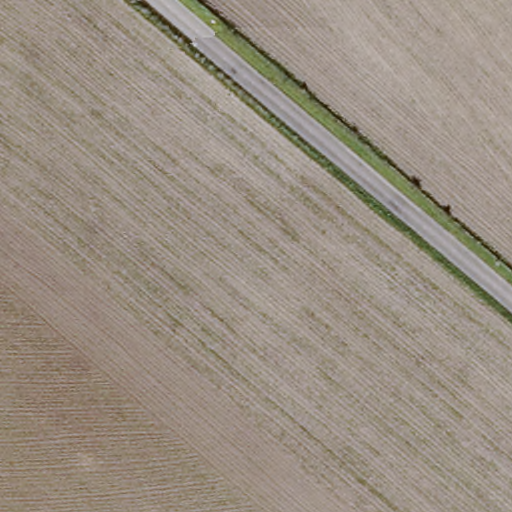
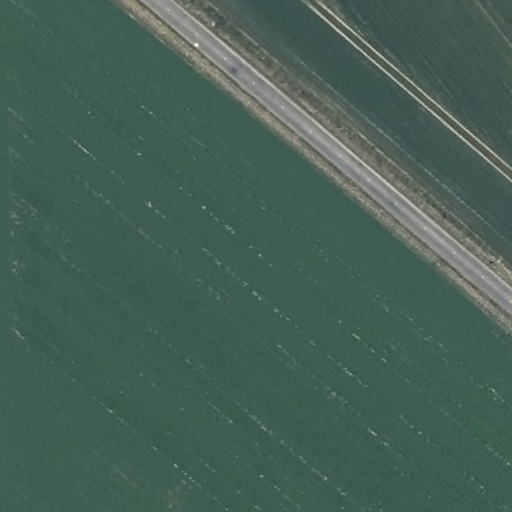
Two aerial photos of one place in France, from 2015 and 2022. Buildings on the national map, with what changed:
[]

